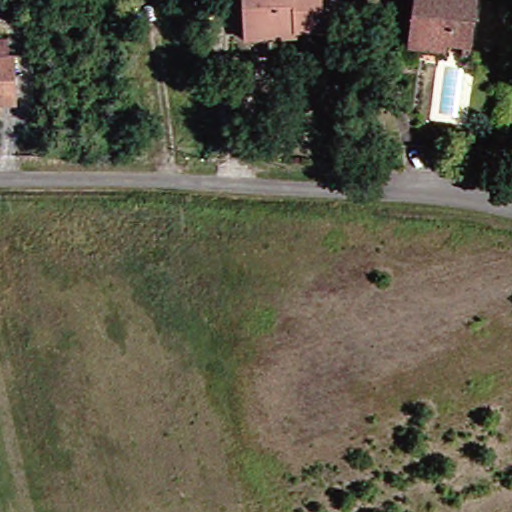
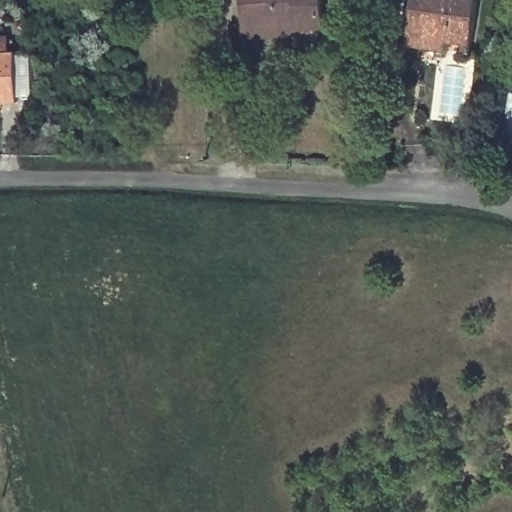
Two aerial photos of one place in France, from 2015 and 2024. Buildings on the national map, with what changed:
unchanged [(241,37),(241,26),(240,0),(317,0),(318,28),(291,29),(291,35),(241,37)]
unchanged [(458,56),(459,46),(439,43),(438,53),(404,49),(405,39),(410,0),(473,0),(467,47),(466,57),(458,56)]
unchanged [(2,38),(3,53),(10,53),(12,103),(0,103),(0,38),(2,38)]

